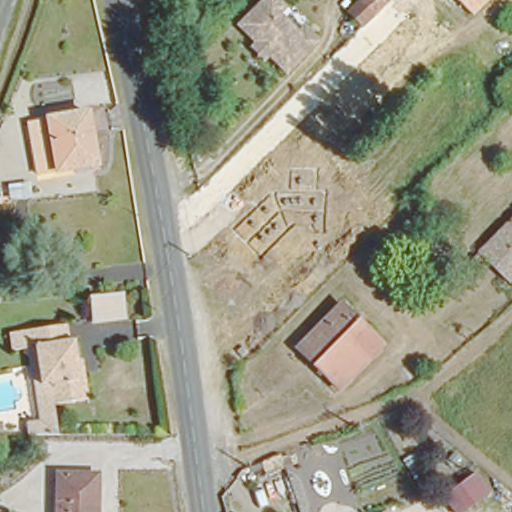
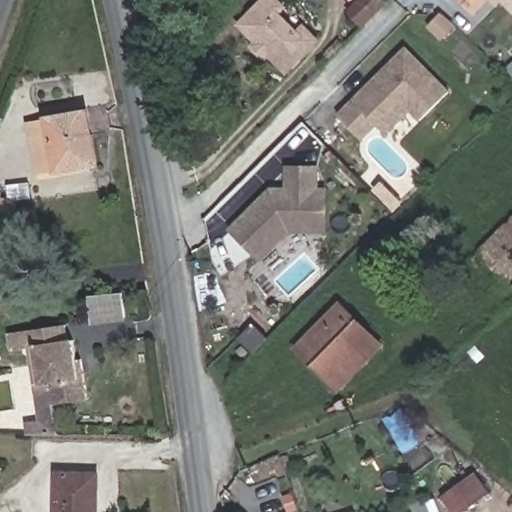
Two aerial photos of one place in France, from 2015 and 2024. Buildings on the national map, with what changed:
unchanged [(257,38),(240,21),(261,0),(282,0),(286,4),(281,9),(297,25),(302,21),(316,35),(286,66),(270,52),(266,57),(252,44),(257,38)]
unchanged [(383,4),(371,16),(363,24),(350,11),(361,0),(386,0),(387,1),(383,4)]
unchanged [(462,0),(483,0),(473,11),(462,0)]
new [(336,114),(406,46),(450,91),(419,121),(410,112),(386,134),(377,125),(361,141),(336,114)]
unchanged [(99,155),(42,171),(31,121),(87,105),(99,155)]
new [(329,234),(290,233),(261,262),(229,229),(272,187),(286,187),(286,166),(320,165),(321,187),(328,188),(329,234)]
unchanged [(482,251),(512,215),(512,278),(482,252),(482,251)]
unchanged [(340,388),(292,344),(338,295),(387,337),(340,388)]
unchanged [(126,317),(92,320),(90,299),(125,296),(126,317)]
unchanged [(67,325),(70,338),(76,338),(81,369),(85,369),(90,401),(55,407),(59,436),(22,437),(20,423),(40,420),(36,383),(30,349),(8,351),(4,331),(67,325)]
unchanged [(61,469),(86,470),(98,470),(97,486),(97,512),(59,512),(61,469)]

